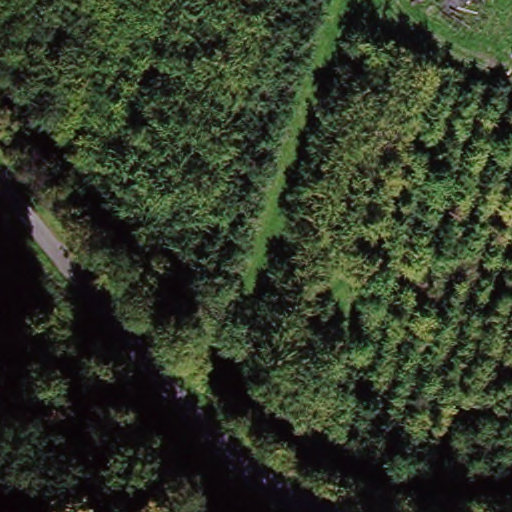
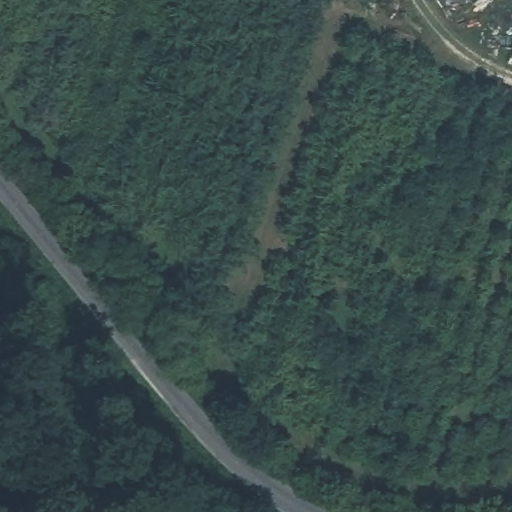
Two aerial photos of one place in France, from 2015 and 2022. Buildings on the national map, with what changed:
[]

